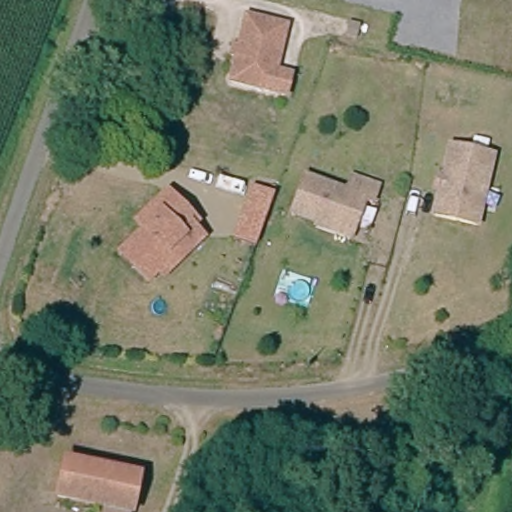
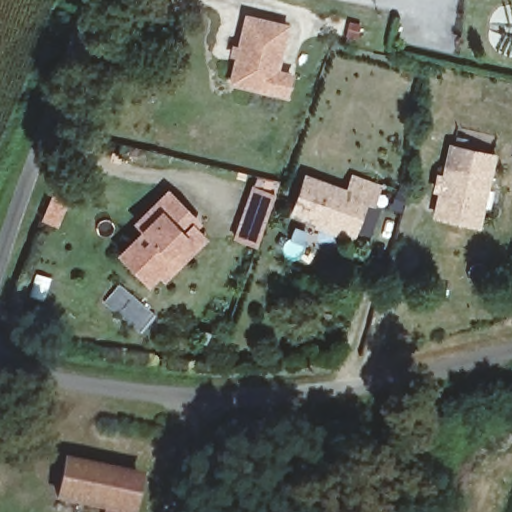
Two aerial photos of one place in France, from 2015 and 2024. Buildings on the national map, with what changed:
unchanged [(286,95),(271,91),(232,83),(245,21),(246,18),(285,27),(285,31),(281,46),(276,72),(290,75),(286,95)]
unchanged [(353,44),(342,41),(346,26),(357,29),(353,44)]
unchanged [(452,153),(494,161),(481,232),(438,224),(452,153)]
unchanged [(307,180),(349,195),(355,180),(380,189),(375,205),(367,203),(355,237),(295,216),(307,180)]
unchanged [(274,193),(255,247),(231,239),(250,186),(274,193)]
unchanged [(157,270),(146,282),(120,256),(131,245),(142,233),(136,227),(165,197),(193,224),(189,229),(202,241),(177,266),(165,278),(157,270)]
unchanged [(136,487),(130,512),(88,512),(52,504),(61,469),(136,487)]

